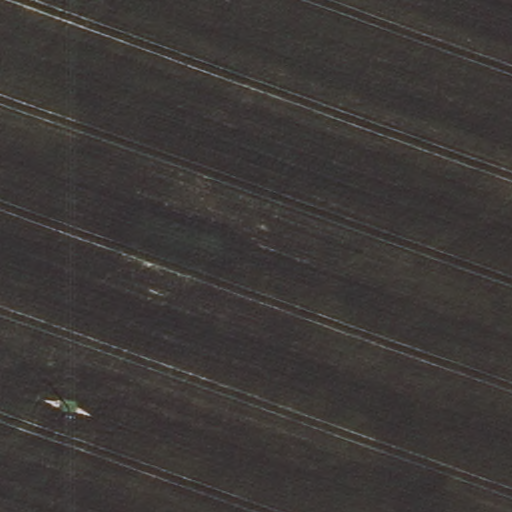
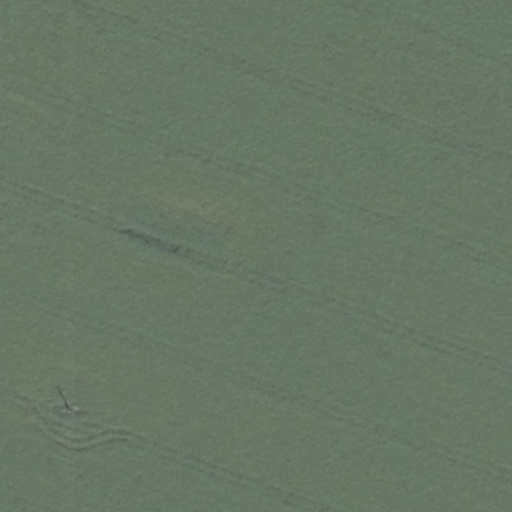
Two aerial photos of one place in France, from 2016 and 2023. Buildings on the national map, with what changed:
[]

